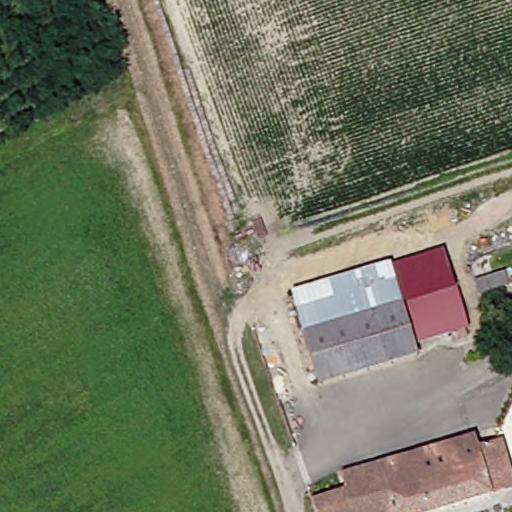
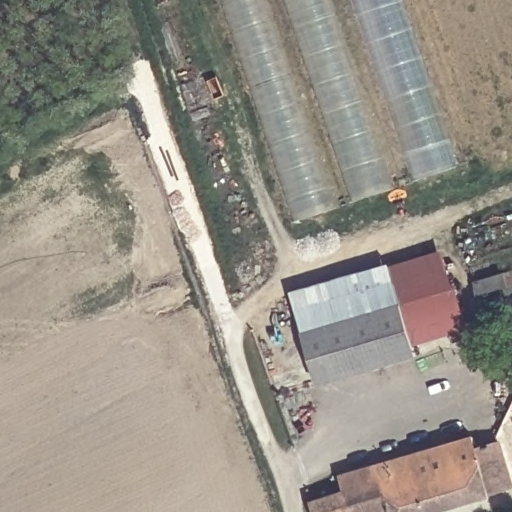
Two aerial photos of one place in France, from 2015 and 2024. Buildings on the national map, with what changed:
new [(225,0),(267,0),(335,206),(303,219),(225,0)]
new [(288,0),(328,0),(392,186),(357,198),(288,0)]
new [(419,180),(355,0),(401,0),(459,165),(419,180)]
unchanged [(302,391),(293,362),(316,352),(297,288),(396,261),(449,247),(476,327),(419,342),(424,354),(325,385),(302,391)]
unchanged [(425,512),(325,512),(321,500),(358,485),(353,472),(483,433),(487,447),(509,440),(512,450),(512,485),(425,512)]

